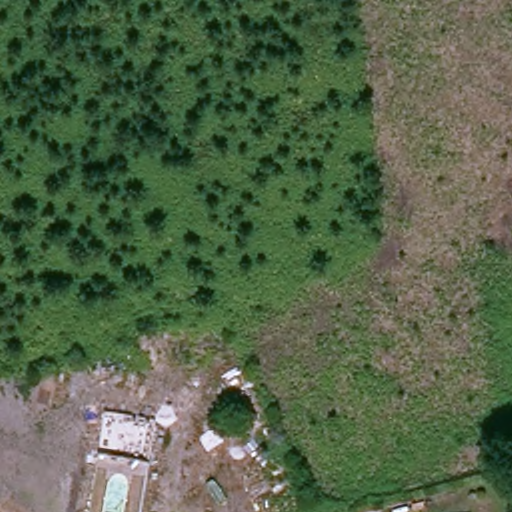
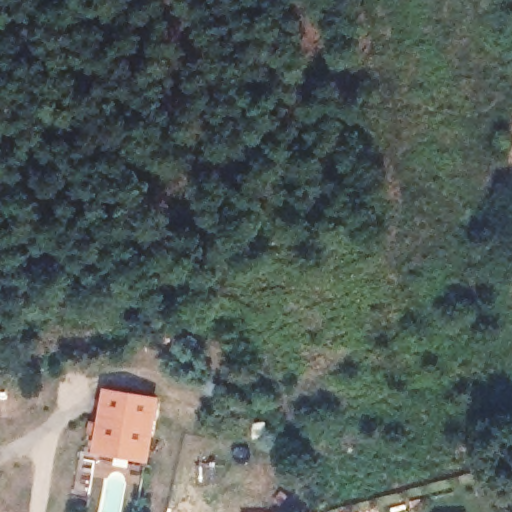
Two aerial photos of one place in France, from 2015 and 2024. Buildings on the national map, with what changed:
new [(162,396),(151,462),(94,452),(104,387),(162,396)]

